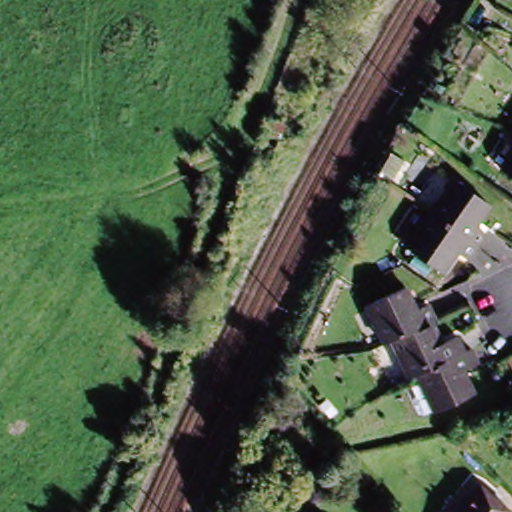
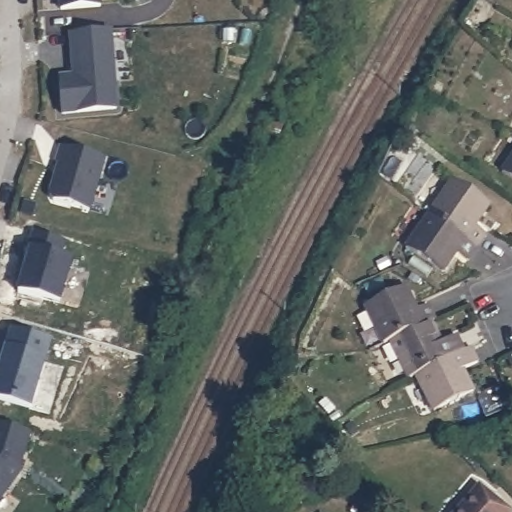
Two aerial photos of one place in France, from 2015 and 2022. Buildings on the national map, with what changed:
new [(65,13),(64,0),(104,0),(105,11),(65,13)]
new [(75,76),(73,33),(113,31),(118,110),(63,114),(60,76),(75,76)]
unchanged [(283,126),(274,151),(255,144),(264,117),(283,126)]
new [(58,163),(55,163),(60,146),(104,159),(88,212),(53,202),(48,195),(58,163)]
unchanged [(499,166),(512,147),(512,176),(499,166)]
unchanged [(452,181),(487,207),(474,225),(484,233),(474,247),(428,214),(452,181)]
unchanged [(404,248),(428,214),(474,247),(464,261),(454,253),(439,273),(404,248)]
new [(20,280),(28,252),(32,234),(63,242),(59,258),(71,261),(60,307),(18,296),(23,280),(20,280)]
unchanged [(359,310),(399,291),(409,313),(422,307),(431,324),(427,326),(387,345),(379,348),(359,310)]
unchanged [(427,326),(436,345),(450,337),(459,355),(412,378),(405,382),(387,345),(427,326)]
new [(31,411),(0,402),(0,366),(5,349),(10,329),(54,342),(48,361),(31,411)]
unchanged [(472,366),(458,373),(469,396),(430,415),(412,378),(459,355),(461,354),(466,353),(472,366)]
new [(0,422),(33,433),(21,469),(23,471),(0,503),(0,422)]
unchanged [(477,487),(509,512),(456,512),(477,487)]

